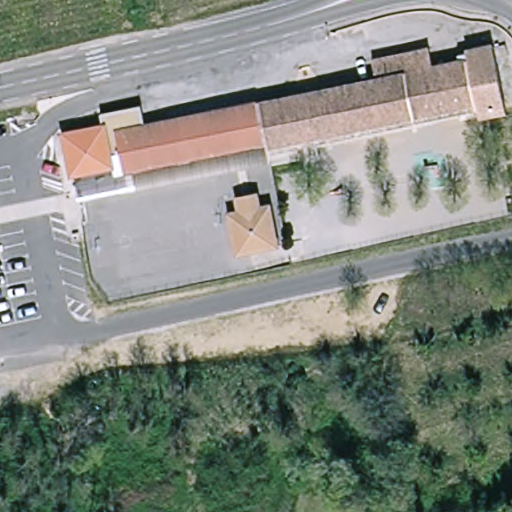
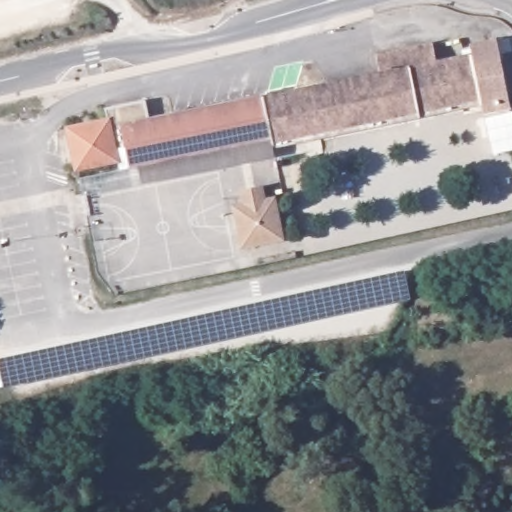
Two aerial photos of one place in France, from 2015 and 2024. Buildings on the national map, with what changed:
unchanged [(106,123),(103,112),(145,104),(149,124),(264,102),(382,77),(379,57),(435,44),(439,65),(478,57),(476,44),(502,38),(512,102),(512,109),(487,114),(485,107),(276,150),(274,142),(129,170),(128,162),(108,167),(75,172),(65,131),(99,125),(106,123)]
unchanged [(245,203),(242,192),(265,187),(268,199),(277,197),(286,237),(245,245),(235,205),(245,203)]
new [(404,270),(411,299),(3,387),(0,374),(0,358),(404,270)]

